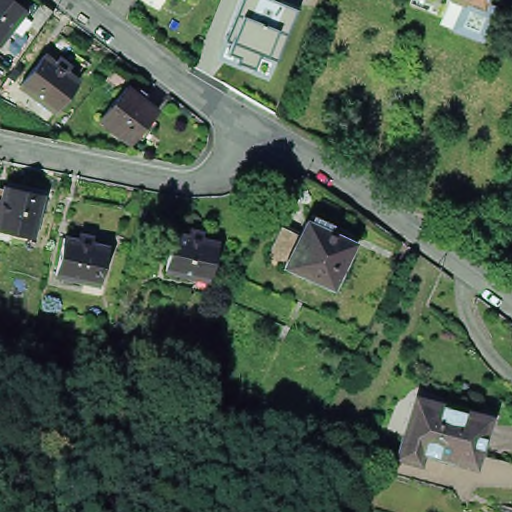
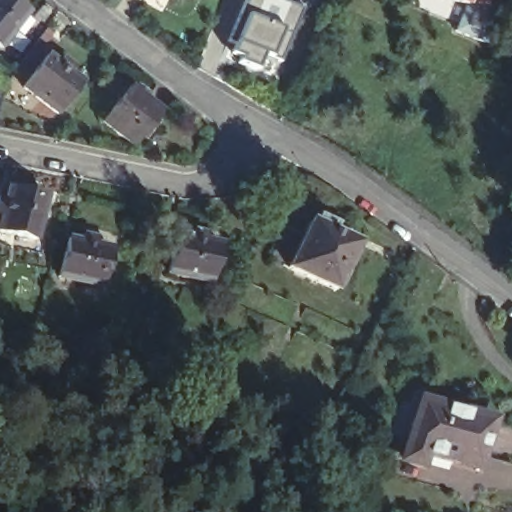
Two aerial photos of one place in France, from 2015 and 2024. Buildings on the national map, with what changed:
unchanged [(0,51),(0,0),(7,0),(27,16),(0,51)]
unchanged [(299,11),(279,62),(268,58),(260,55),(254,69),(237,63),(240,58),(230,54),(233,43),(227,40),(243,0),(270,0),(299,11)]
unchanged [(457,3),(450,21),(417,8),(421,0),(457,0),(457,3)]
unchanged [(488,11),(470,4),(469,8),(457,3),(457,0),(492,0),(490,5),(488,11)]
unchanged [(27,27),(43,3),(57,14),(45,31),(40,37),(27,27)]
unchanged [(503,11),(490,45),(462,34),(472,9),(469,8),(470,4),(488,11),(490,5),(503,11)]
unchanged [(46,55),(57,64),(62,58),(72,67),(68,72),(80,82),(57,113),(23,87),(46,55)]
unchanged [(159,111),(134,146),(102,121),(128,87),(159,111)]
unchanged [(0,232),(0,219),(1,214),(0,214),(0,198),(5,199),(7,186),(43,194),(35,239),(0,232)]
unchanged [(308,222),(312,214),(331,223),(328,231),(353,242),(334,288),(285,267),(267,258),(281,227),(300,235),(306,221),(308,222)]
unchanged [(162,271),(170,234),(185,238),(187,230),(200,233),(198,241),(215,244),(205,282),(162,271)]
unchanged [(75,234),(88,236),(87,244),(103,247),(95,286),(54,276),(62,238),(73,242),(75,234)]
unchanged [(147,307),(151,294),(170,300),(167,312),(147,307)]
unchanged [(448,470),(450,466),(425,459),(422,473),(400,466),(419,407),(491,427),(480,464),(477,478),(448,470)]

